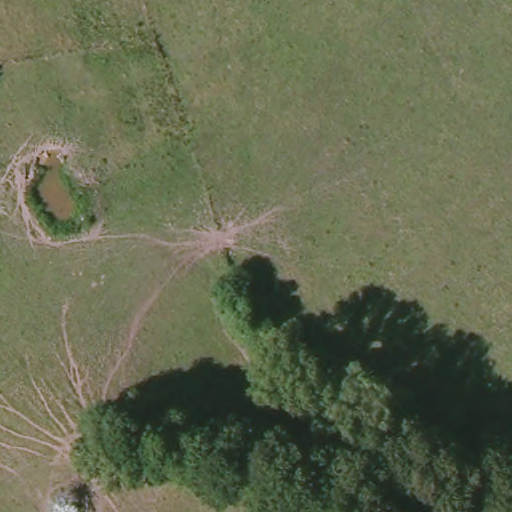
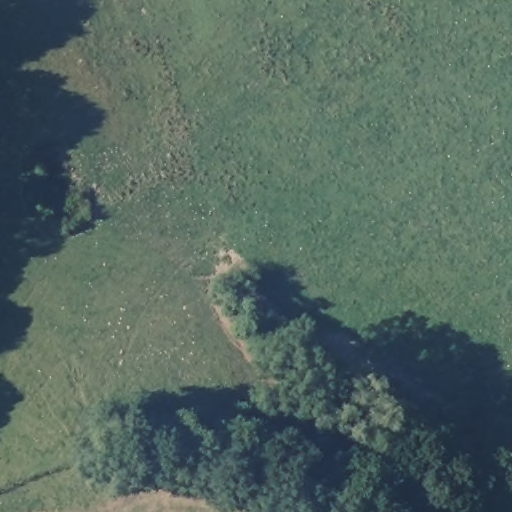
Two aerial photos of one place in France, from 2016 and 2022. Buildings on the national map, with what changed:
[]

